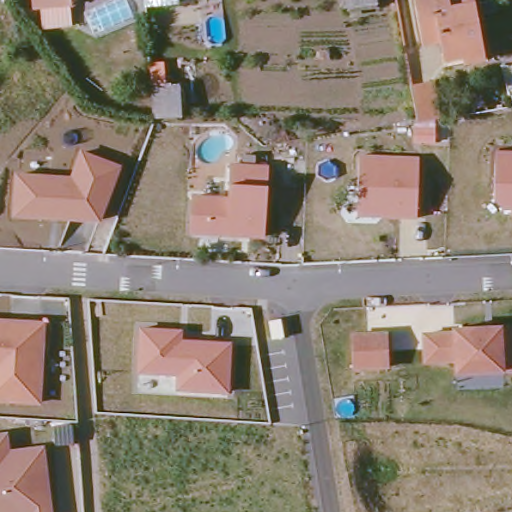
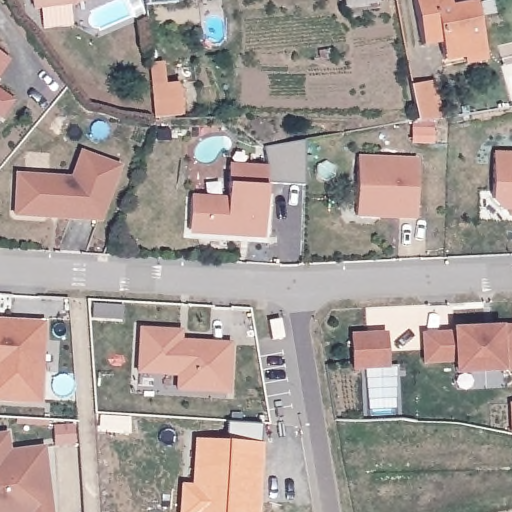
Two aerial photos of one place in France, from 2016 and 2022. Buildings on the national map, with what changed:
unchanged [(30,0),(73,0),(69,2),(70,25),(38,26),(37,6),(31,7),(30,0)]
unchanged [(173,1),(162,2),(141,3),(141,0),(173,0),(173,1)]
unchanged [(370,4),(342,8),(341,0),(369,0),(370,4)]
unchanged [(469,45),(430,51),(427,33),(411,35),(408,0),(441,0),(441,5),(448,4),(447,1),(458,0),(463,0),(469,45)]
new [(9,59),(0,72),(0,53),(9,59)]
unchanged [(156,60),(157,81),(173,81),(175,114),(146,116),(145,101),(141,61),(156,60)]
unchanged [(416,79),(420,114),(400,115),(396,82),(416,79)]
new [(12,100),(1,116),(0,116),(0,92),(12,100)]
unchanged [(512,149),(512,215),(507,215),(507,207),(497,206),(497,198),(492,197),(495,148),(512,149)]
unchanged [(14,172),(70,175),(79,149),(122,165),(100,220),(11,218),(14,172)]
unchanged [(357,152),(418,155),(415,216),(355,214),(357,152)]
unchanged [(188,192),(226,194),(228,160),(267,163),(263,234),(187,231),(188,192)]
unchanged [(44,318),(38,401),(0,399),(0,316),(44,318)]
unchanged [(421,360),(418,330),(449,329),(449,325),(498,323),(512,323),(512,369),(501,369),(453,372),(452,357),(421,360)]
unchanged [(135,324),(180,326),(180,339),(230,341),(227,391),(172,388),(173,373),(133,371),(135,324)]
unchanged [(349,331),(386,329),(387,366),(350,367),(349,331)]
new [(197,460),(194,460),(195,439),(225,440),(225,421),(261,423),(260,442),(257,487),(256,501),(256,512),(180,512),(181,486),(196,487),(197,460)]
unchanged [(6,429),(8,447),(42,443),(50,512),(0,512),(0,430),(6,429)]

